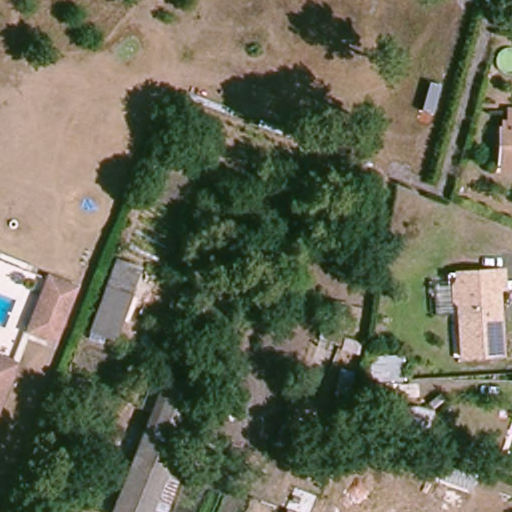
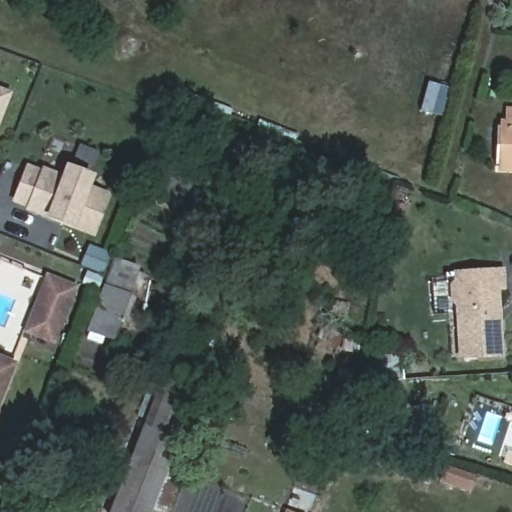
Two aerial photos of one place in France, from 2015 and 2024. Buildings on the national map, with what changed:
new [(8,95),(0,116),(0,92),(8,95)]
unchanged [(502,123),(509,123),(509,111),(512,111),(512,172),(500,172),(502,123)]
new [(68,181),(72,170),(91,177),(86,189),(109,198),(94,236),(30,211),(31,208),(16,202),(31,167),(68,181)]
unchanged [(143,269),(114,341),(89,331),(117,259),(143,269)]
unchanged [(504,272),(505,290),(500,290),(504,354),(461,357),(459,303),(454,301),(454,287),(457,283),(457,275),(504,272)]
unchanged [(50,279),(74,288),(55,338),(31,328),(50,279)]
unchanged [(343,335),(339,346),(319,339),(323,328),(343,335)]
unchanged [(361,343),(357,354),(343,349),(347,338),(361,343)]
unchanged [(12,364),(0,397),(0,359),(12,364)]
unchanged [(402,392),(394,392),(368,394),(366,370),(400,368),(402,392)]
unchanged [(338,377),(342,369),(357,373),(353,383),(340,425),(327,421),(336,392),(325,388),(329,377),(337,380),(338,377)]
unchanged [(163,512),(154,508),(152,512),(112,512),(164,376),(200,390),(172,461),(185,466),(168,512),(163,512)]
unchanged [(238,407),(234,417),(221,411),(224,402),(238,407)]
unchanged [(220,437),(215,449),(203,444),(208,432),(220,437)]
unchanged [(301,445),(333,459),(328,470),(295,457),(301,445)]
unchanged [(287,512),(289,504),(311,512),(287,512)]

